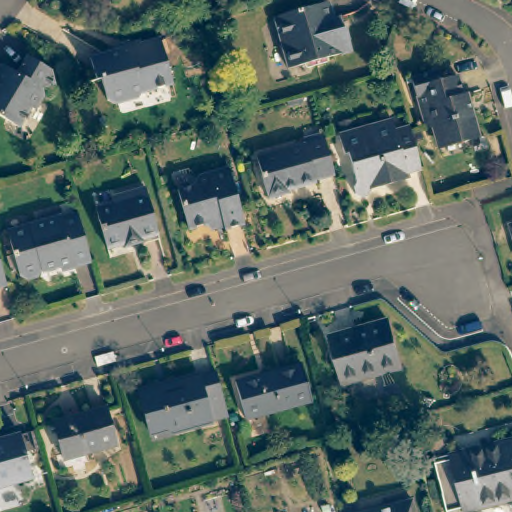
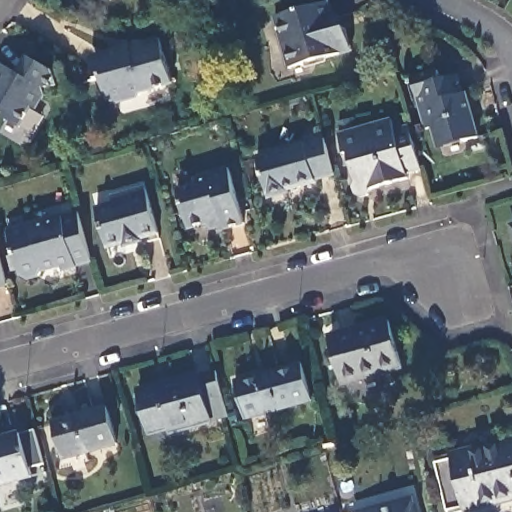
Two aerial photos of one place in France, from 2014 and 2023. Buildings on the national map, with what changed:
unchanged [(327,0),(335,27),(345,24),(351,47),(287,64),(273,14),(323,0),(327,0)]
unchanged [(114,46),(117,48),(124,46),(123,41),(136,37),(137,40),(155,35),(167,79),(136,89),(134,93),(108,100),(104,98),(97,76),(92,76),(89,66),(86,54),(97,50),(114,46)]
unchanged [(12,70),(22,53),(46,67),(50,82),(37,85),(39,91),(31,106),(26,103),(14,124),(0,115),(0,64),(12,70)]
unchanged [(410,78),(436,71),(438,80),(455,76),(466,111),(469,110),(478,138),(464,141),(457,139),(438,144),(432,128),(425,129),(410,78)]
unchanged [(405,174),(406,179),(371,190),(368,195),(360,198),(355,196),(352,189),(356,182),(347,155),(343,156),(337,135),(389,120),(392,131),(407,127),(420,170),(405,174)]
unchanged [(305,183),(278,191),(278,193),(259,199),(248,158),(295,145),(292,138),(312,132),(313,140),(323,175),(305,180),(305,183)]
unchanged [(239,219),(214,226),(211,217),(184,224),(173,186),(187,182),(192,172),(223,164),(239,219)]
unchanged [(157,234),(140,239),(141,242),(124,247),(122,245),(107,248),(96,210),(112,205),(111,198),(145,189),(157,234)]
unchanged [(71,262),(69,257),(37,266),(35,272),(22,275),(17,274),(4,227),(73,209),(87,257),(71,262)]
unchanged [(0,288),(0,260),(7,285),(0,288)]
unchanged [(390,321),(402,367),(344,383),(332,338),(390,321)]
unchanged [(305,364),(315,400),(250,419),(240,382),(305,364)]
unchanged [(167,432),(165,426),(147,431),(137,393),(213,371),(226,416),(167,432)]
unchanged [(104,408),(114,445),(61,459),(52,423),(104,408)]
unchanged [(19,435),(30,476),(0,484),(0,440),(19,435)]
unchanged [(435,458),(431,441),(438,439),(442,456),(512,440),(512,501),(467,512),(447,512),(435,458)]
unchanged [(414,501),(417,512),(369,512),(414,501)]

